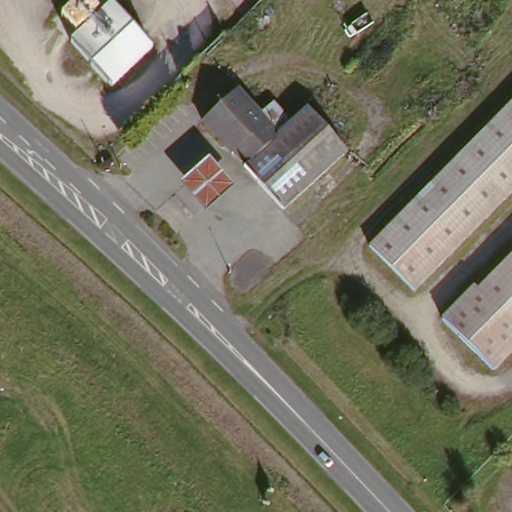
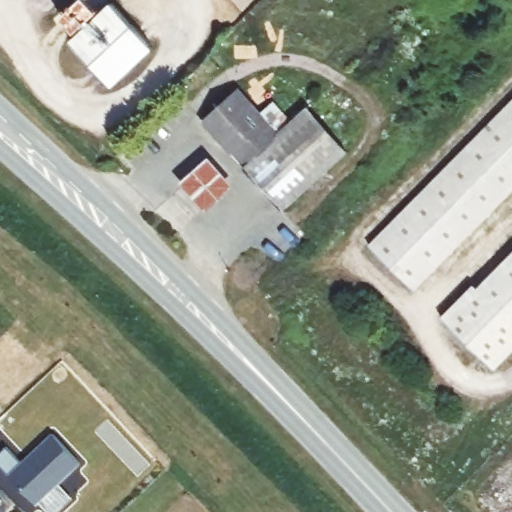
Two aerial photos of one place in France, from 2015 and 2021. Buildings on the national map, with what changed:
unchanged [(152,50),(112,91),(68,44),(75,33),(59,19),(74,0),(82,0),(97,14),(110,2),(152,50)]
unchanged [(341,151),(280,208),(199,123),(233,91),(255,114),(267,103),(287,124),(303,109),(341,151)]
unchanged [(426,272),(409,288),(366,245),(512,98),(512,188),(427,274),(426,272)]
unchanged [(181,182),(207,162),(231,187),(206,211),(181,182)]
unchanged [(438,318),(512,246),(512,344),(486,370),(438,318)]
new [(7,447),(22,463),(53,434),(81,463),(36,505),(0,466),(0,453),(7,447)]

